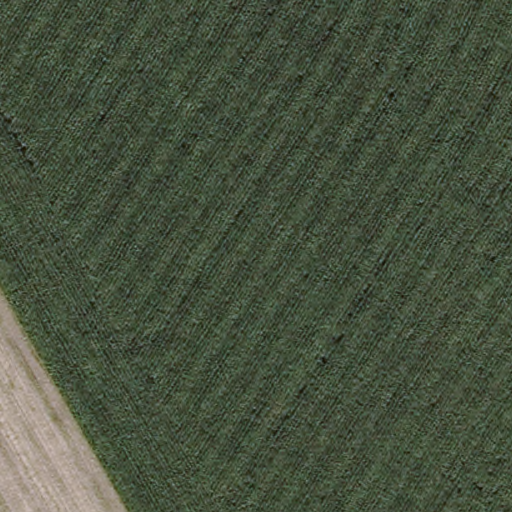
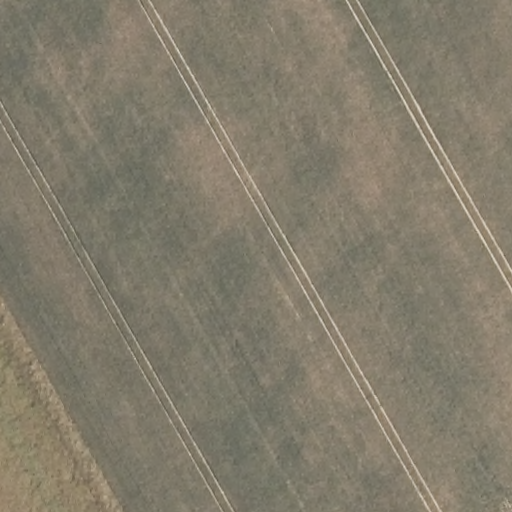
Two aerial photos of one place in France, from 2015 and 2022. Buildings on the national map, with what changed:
[]

